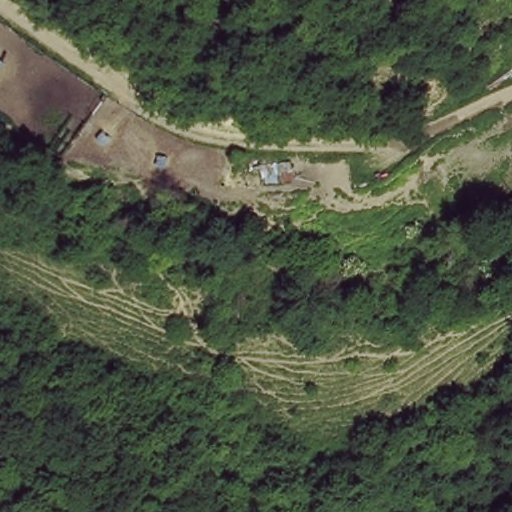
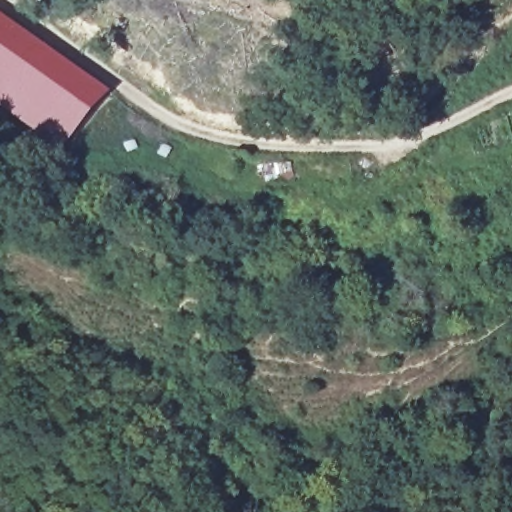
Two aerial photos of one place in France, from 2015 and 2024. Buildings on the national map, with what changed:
new [(67,154),(0,105),(0,8),(113,91),(67,154)]

